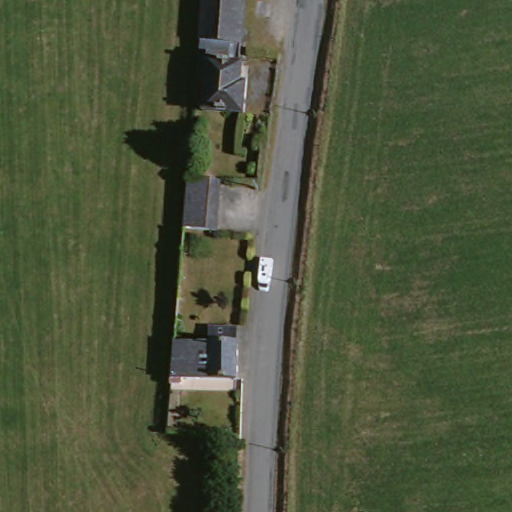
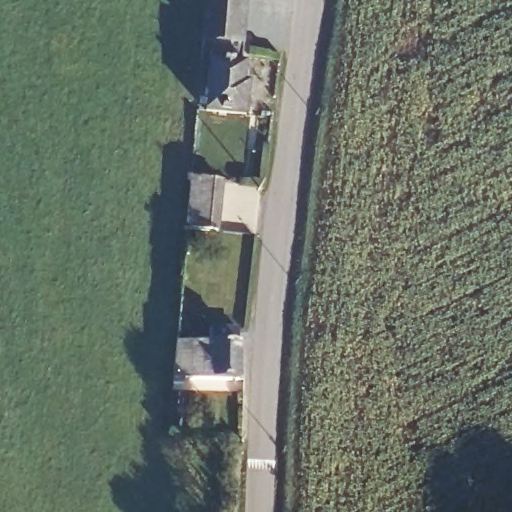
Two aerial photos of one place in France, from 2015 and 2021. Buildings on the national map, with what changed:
unchanged [(209,58),(199,57),(204,0),(245,0),(241,53),(231,52),(230,60),(209,58)]
unchanged [(230,60),(243,61),(240,87),(246,87),(245,113),(204,108),(209,58),(230,60)]
unchanged [(221,184),(216,233),(186,230),(189,182),(221,184)]
unchanged [(176,337),(211,338),(211,324),(238,326),(238,378),(173,376),(176,341),(176,337)]

